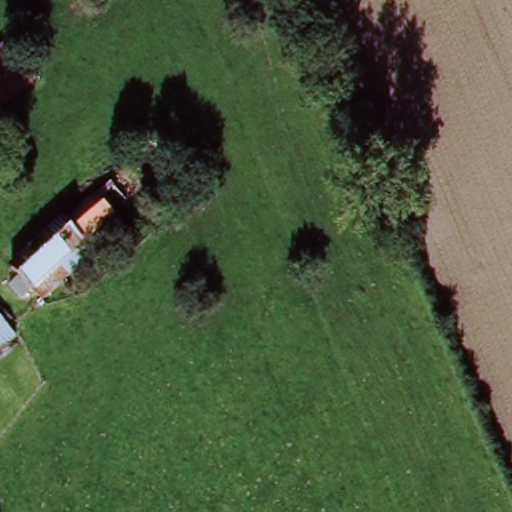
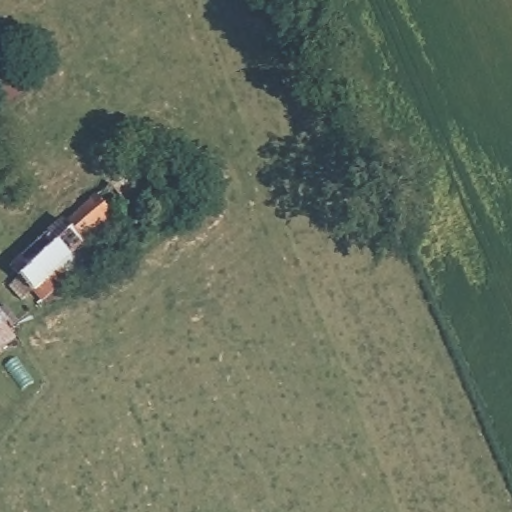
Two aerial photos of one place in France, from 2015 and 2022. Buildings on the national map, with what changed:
unchanged [(1,113),(0,111),(0,49),(12,40),(42,81),(1,113)]
unchanged [(35,294),(13,270),(65,222),(154,146),(172,168),(128,209),(137,219),(114,238),(106,229),(87,247),(94,257),(43,302),(35,294)]

